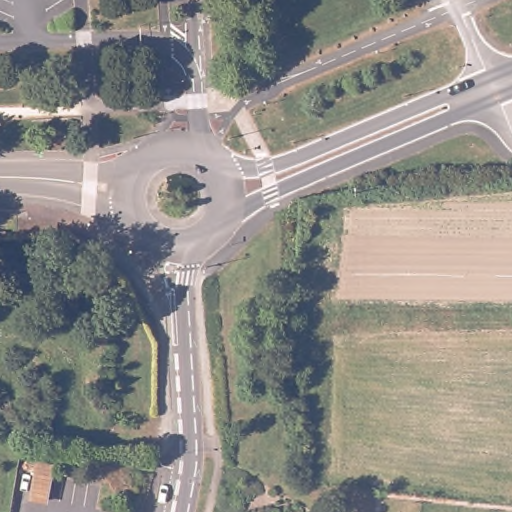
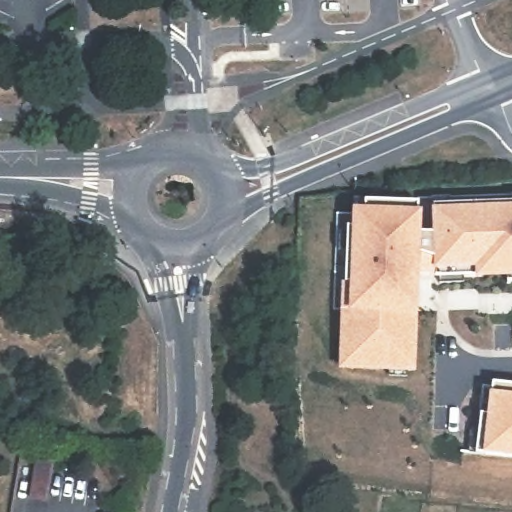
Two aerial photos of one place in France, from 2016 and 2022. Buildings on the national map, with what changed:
new [(342,354),(344,309),(345,284),(347,229),(355,229),(355,215),(364,215),(365,202),(418,204),(417,235),(434,237),(433,208),(475,206),(512,205),(512,284),(507,284),(507,277),(477,278),(477,275),(435,277),(416,276),(415,292),(414,312),(412,369),(351,367),(342,367),(342,354)]
new [(476,454),(481,414),(488,416),(492,384),(512,386),(512,458),(476,454)]
unchanged [(32,469),(51,473),(44,512),(30,512),(24,511),(32,469)]

